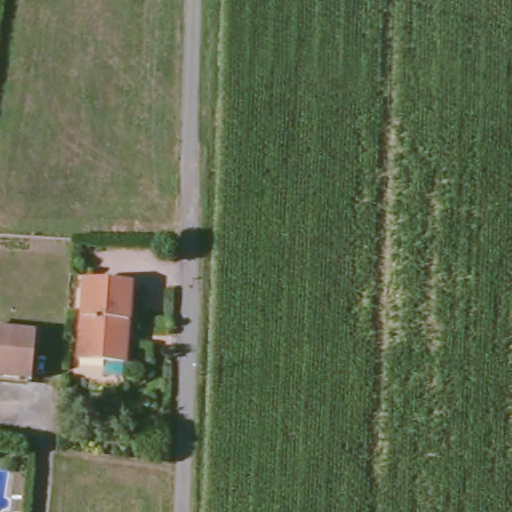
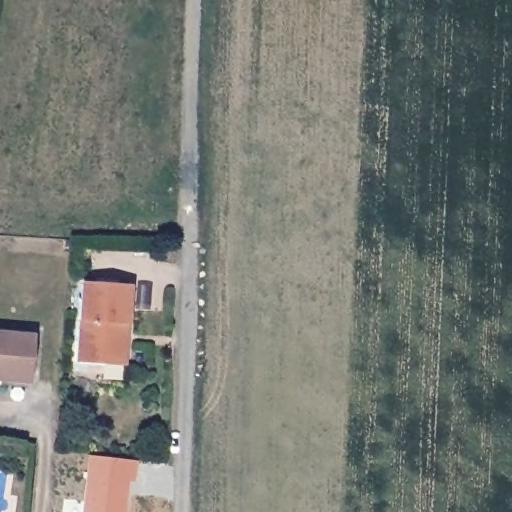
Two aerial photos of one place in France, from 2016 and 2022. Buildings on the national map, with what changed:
unchanged [(131,282),(128,322),(125,322),(123,363),(78,360),(85,279),(131,282)]
unchanged [(0,372),(0,327),(7,327),(29,329),(24,374),(3,372),(0,372)]
new [(132,454),(129,474),(124,472),(118,512),(77,512),(86,447),(132,454)]

